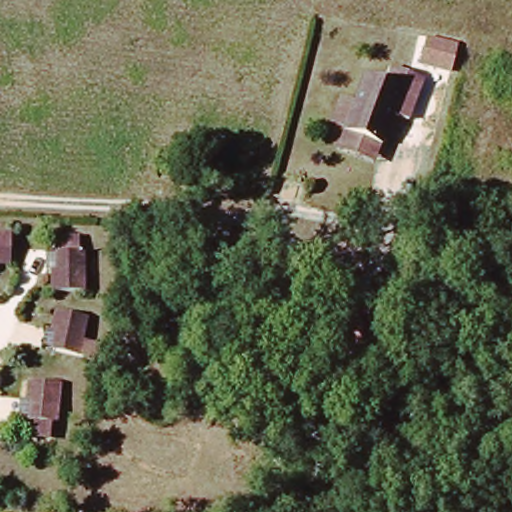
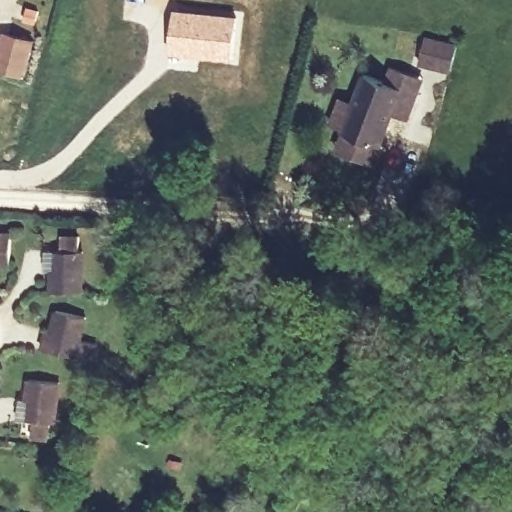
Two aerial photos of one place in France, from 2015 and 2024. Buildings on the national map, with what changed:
new [(172,8),(237,15),(230,62),(167,53),(172,8)]
new [(0,71),(0,57),(5,35),(32,42),(24,75),(0,71)]
new [(429,36),(462,43),(451,74),(421,63),(429,36)]
unchanged [(347,133),(347,129),(334,124),(342,102),(356,107),(369,73),(407,85),(412,73),(427,78),(420,99),(415,113),(400,108),(387,146),(382,164),(340,150),(347,133)]
unchanged [(52,252),(54,239),(76,242),(75,252),(81,252),(75,295),(50,292),(56,252),(52,252)]
unchanged [(0,254),(0,243),(1,244),(0,254)]
unchanged [(51,336),(55,309),(86,319),(82,346),(97,348),(94,364),(37,353),(40,334),(51,336)]
unchanged [(376,313),(366,356),(344,351),(352,309),(376,313)]
unchanged [(180,383),(159,405),(147,391),(166,369),(180,383)]
unchanged [(55,426),(50,425),(47,442),(34,439),(35,422),(30,422),(36,387),(58,389),(55,426)]

